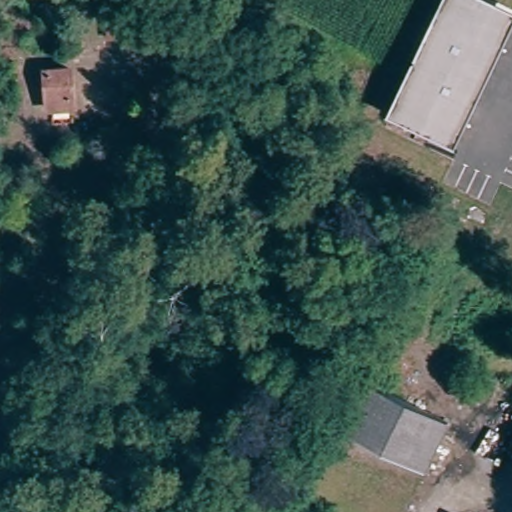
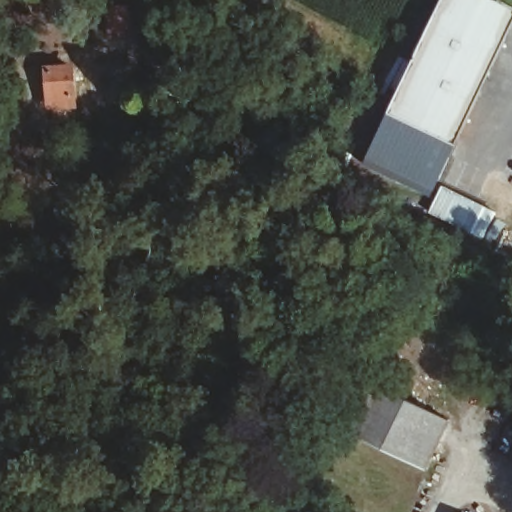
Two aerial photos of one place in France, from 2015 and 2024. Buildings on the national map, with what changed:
unchanged [(442,0),(500,0),(512,6),(512,26),(505,41),(438,9),(442,0)]
unchanged [(130,39),(110,40),(107,9),(129,8),(130,39)]
unchanged [(438,9),(505,41),(457,143),(390,111),(438,9)]
unchanged [(74,105),(50,107),(47,69),(71,67),(74,105)]
new [(457,143),(431,195),(365,164),(390,111),(457,143)]
new [(441,185),(486,207),(473,233),(427,212),(441,185)]
unchanged [(426,468),(341,428),(363,381),(447,421),(426,468)]

